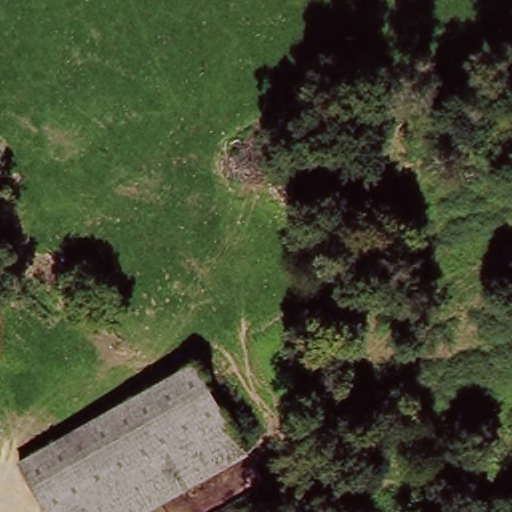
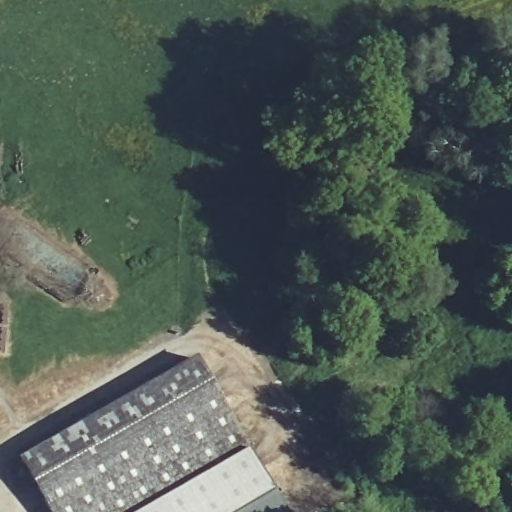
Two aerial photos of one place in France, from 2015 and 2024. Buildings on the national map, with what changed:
unchanged [(198,357),(251,452),(144,512),(49,512),(18,457),(198,357)]
new [(247,454),(283,512),(144,512),(247,454)]

